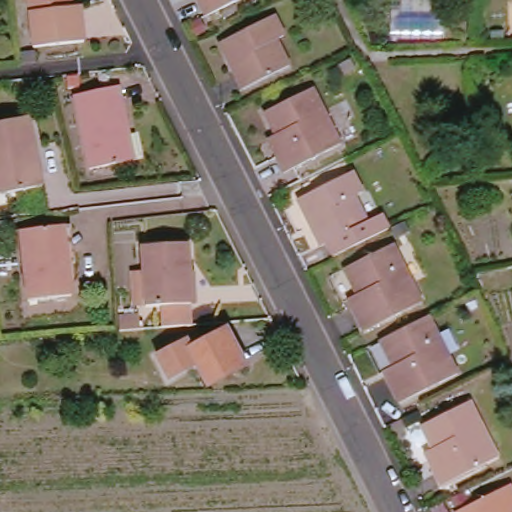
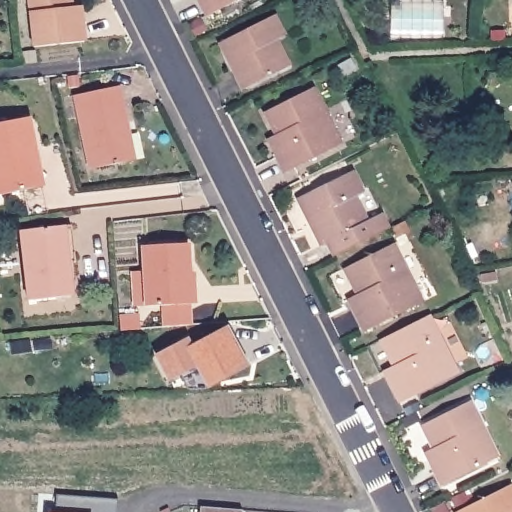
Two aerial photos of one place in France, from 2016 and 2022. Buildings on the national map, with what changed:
unchanged [(89,44),(39,50),(32,0),(68,0),(75,0),(76,10),(84,9),(89,44)]
unchanged [(233,0),(206,14),(199,0),(233,0)]
unchanged [(223,45),(278,17),(289,39),(281,42),(294,69),(246,92),(240,80),(238,75),(223,45)]
unchanged [(125,162),(88,169),(75,95),(119,87),(128,135),(133,161),(125,162)]
unchanged [(314,91),(343,148),(289,175),(274,148),(282,144),(269,115),(314,91)]
unchanged [(21,125),(28,157),(36,155),(43,190),(0,199),(0,129),(21,125)]
unchanged [(297,202),(352,175),(362,196),(354,201),(366,225),(381,218),(388,231),(334,258),(327,245),(319,249),(314,236),(311,231),(297,202)]
unchanged [(24,230),(63,225),(67,262),(73,261),(78,295),(33,299),(24,230)]
unchanged [(145,277),(143,251),(188,245),(191,273),(199,272),(203,305),(194,306),(149,310),(137,312),(133,278),(145,277)]
unchanged [(363,333),(350,305),(364,297),(363,294),(356,297),(351,286),(342,272),(393,247),(399,262),(421,304),(363,333)]
unchanged [(138,317),(138,330),(115,331),(114,320),(138,317)]
unchanged [(432,318),(460,376),(402,405),(389,377),(399,373),(384,342),(432,318)]
unchanged [(159,351),(183,339),(188,348),(231,327),(246,356),(222,368),(219,362),(201,371),(195,360),(171,372),(159,351)]
unchanged [(424,428),(472,405),(483,426),(499,460),(489,465),(444,487),(431,460),(439,456),(424,428)]
unchanged [(508,490),(512,497),(512,512),(461,512),(508,490)]
new [(118,500),(117,512),(56,512),(56,496),(118,500)]
new [(201,506),(243,510),(242,512),(200,512),(201,506)]

